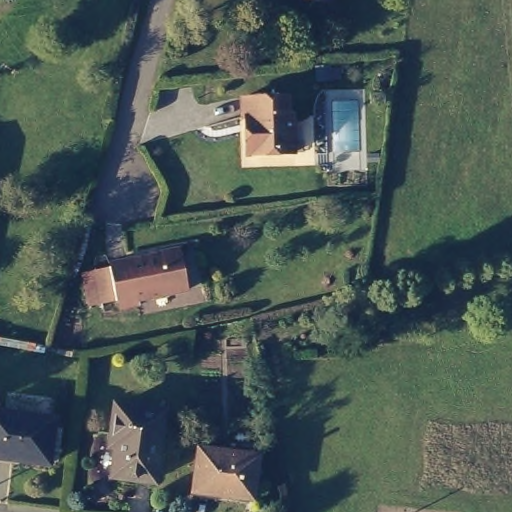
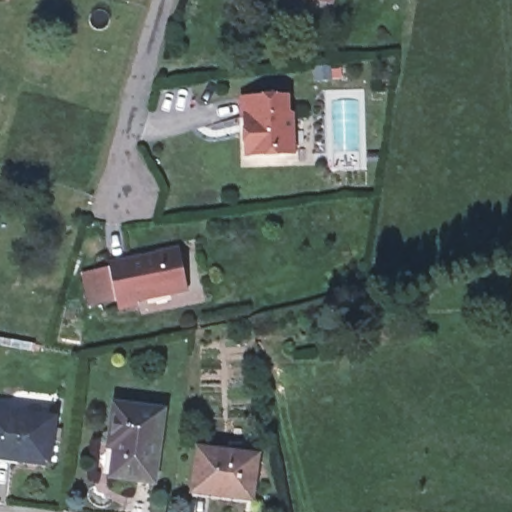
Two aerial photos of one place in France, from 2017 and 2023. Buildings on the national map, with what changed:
unchanged [(340,68),(341,77),(331,78),(332,80),(317,81),(316,67),(330,66),(330,69),(340,68)]
unchanged [(246,118),(243,118),(243,98),(288,96),(288,114),(292,114),(293,153),(252,155),(252,153),(247,154),(246,118)]
unchanged [(84,280),(111,275),(110,270),(157,260),(157,258),(180,253),(188,295),(138,305),(139,310),(119,314),(117,304),(90,309),(84,280)]
unchanged [(148,476),(108,470),(111,448),(115,448),(115,441),(107,440),(112,401),(158,407),(148,476)]
unchanged [(45,459),(6,454),(0,454),(0,408),(50,414),(45,459)]
unchanged [(248,494),(188,487),(194,443),(253,451),(248,494)]

